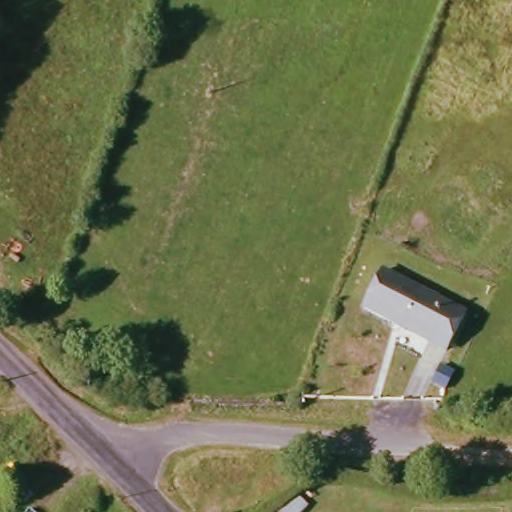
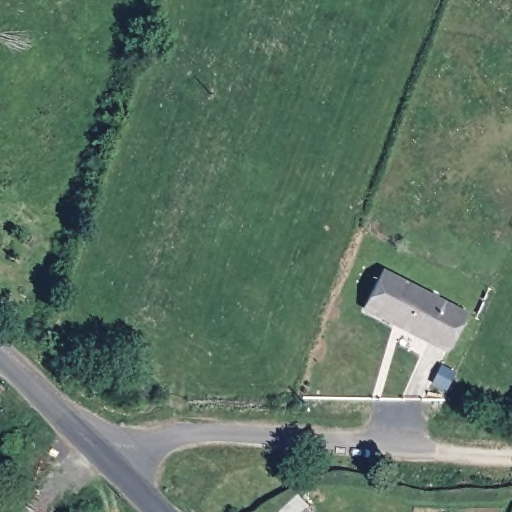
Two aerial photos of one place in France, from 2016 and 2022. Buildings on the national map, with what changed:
unchanged [(451,353),(400,326),(397,330),(368,315),(386,278),(469,320),(451,353)]
unchanged [(303,512),(282,512),(297,498),(307,508),(303,512)]

